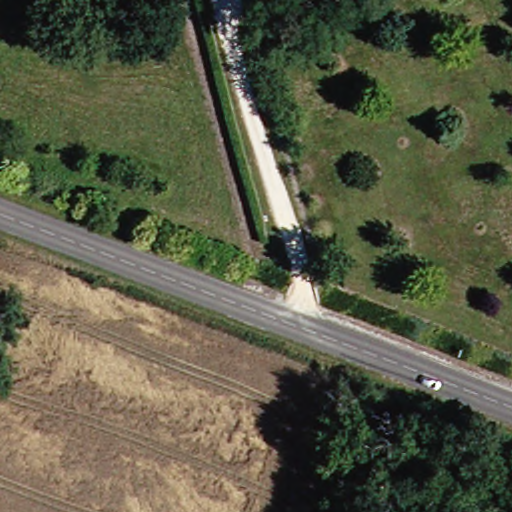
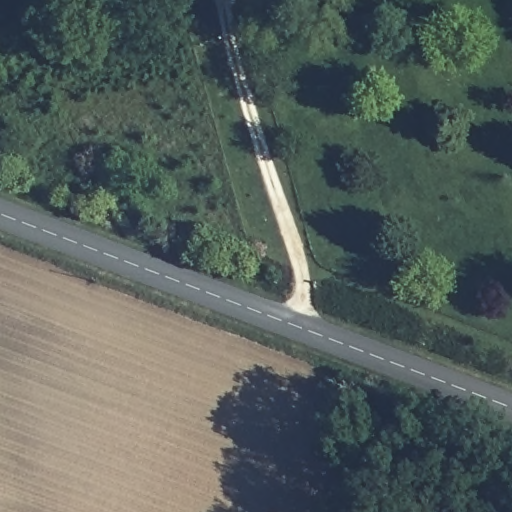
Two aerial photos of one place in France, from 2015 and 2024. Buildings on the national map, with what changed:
[]

